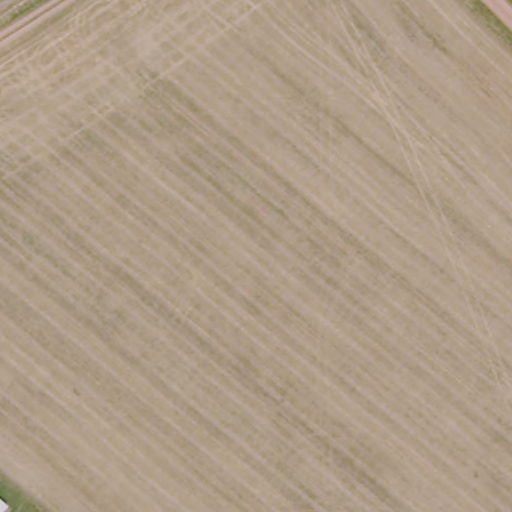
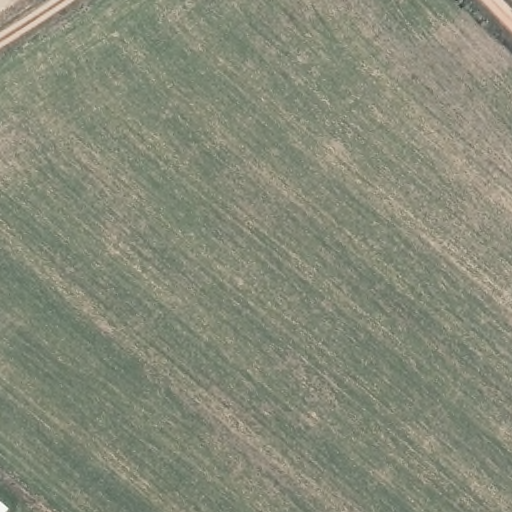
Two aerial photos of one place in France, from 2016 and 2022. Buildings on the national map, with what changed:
unchanged [(10,504),(4,512),(0,512),(0,496),(10,504)]

